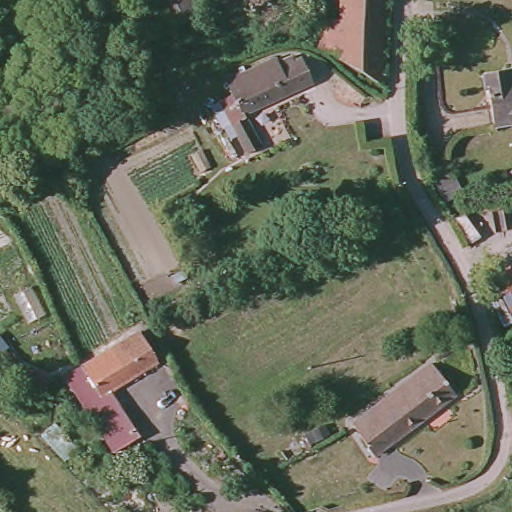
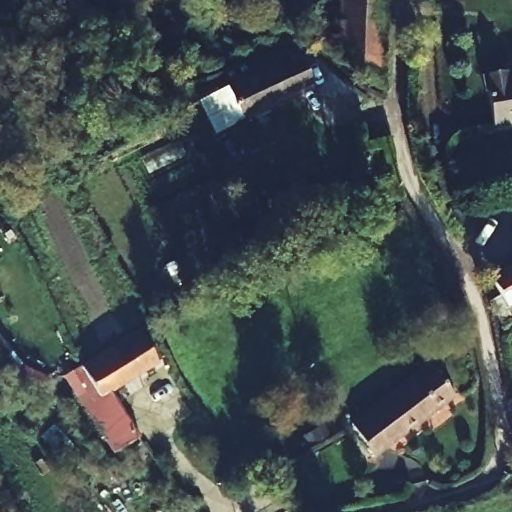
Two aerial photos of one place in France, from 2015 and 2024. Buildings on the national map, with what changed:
unchanged [(171,32),(152,0),(192,0),(203,15),(171,32)]
unchanged [(281,39),(240,0),(261,0),(291,30),(281,39)]
unchanged [(302,44),(305,14),(326,16),(328,0),(378,0),(374,96),(366,90),(327,63),(322,59),(312,50),(304,46),(302,44)]
unchanged [(221,109),(231,103),(223,90),(219,85),(247,70),(273,55),(276,60),(289,54),(293,61),(299,58),(313,83),(247,119),(264,151),(249,160),(221,109)]
unchanged [(489,74),(511,71),(512,80),(512,122),(494,124),(489,74)]
unchanged [(512,267),(512,304),(496,277),(512,267)]
unchanged [(136,334),(155,362),(107,391),(133,435),(135,439),(109,454),(108,454),(96,434),(80,407),(97,397),(81,369),(136,334)]
unchanged [(452,393),(371,456),(364,446),(349,427),(432,366),(452,393)]

